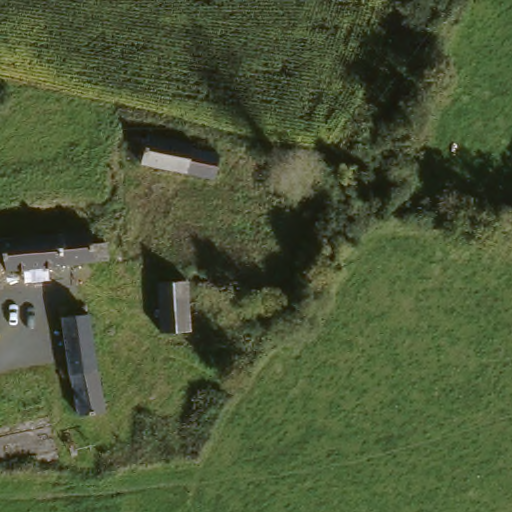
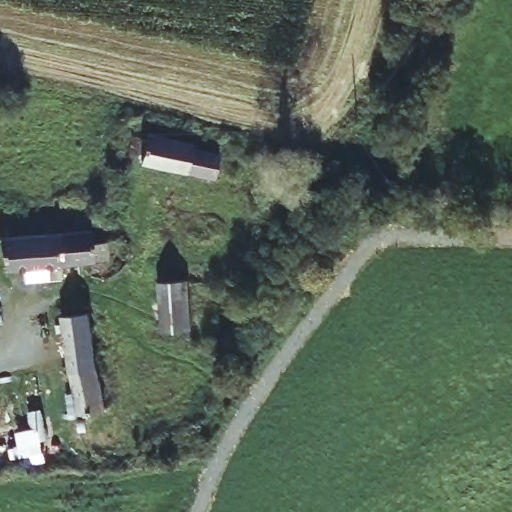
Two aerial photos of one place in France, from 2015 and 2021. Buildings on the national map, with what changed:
unchanged [(211,172),(143,164),(144,133),(188,142),(216,145),(211,172)]
unchanged [(101,258),(0,274),(0,240),(83,224),(84,238),(99,237),(101,258)]
unchanged [(194,332),(163,333),(159,282),(190,280),(194,332)]
unchanged [(106,414),(76,417),(58,318),(90,315),(106,414)]

